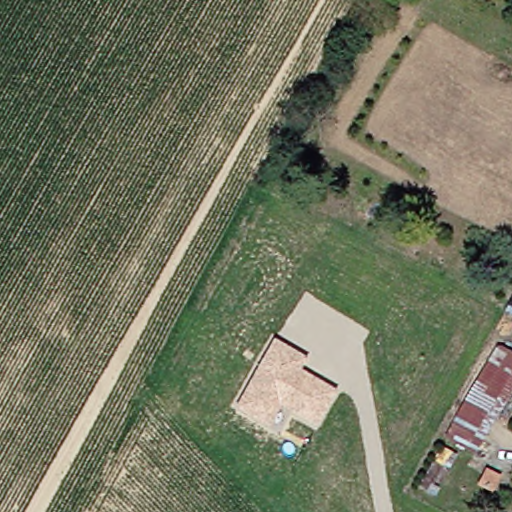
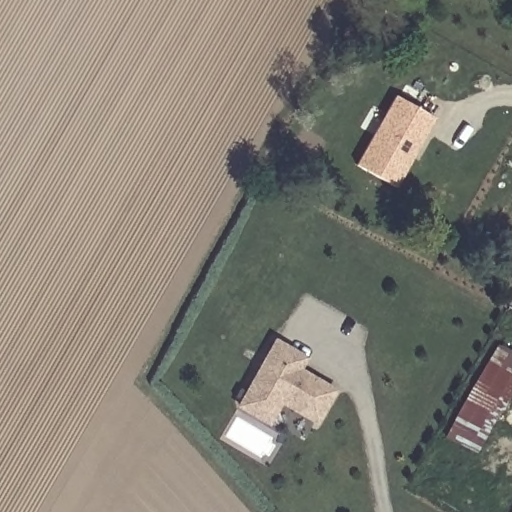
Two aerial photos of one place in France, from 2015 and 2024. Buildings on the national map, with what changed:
new [(394,96),(432,117),(394,184),(356,163),(394,96)]
unchanged [(444,432),(486,359),(498,338),(512,346),(512,382),(474,449),(444,432)]
unchanged [(306,356),(300,369),(336,389),(317,423),(279,404),(268,426),(236,406),(273,339),(306,356)]

